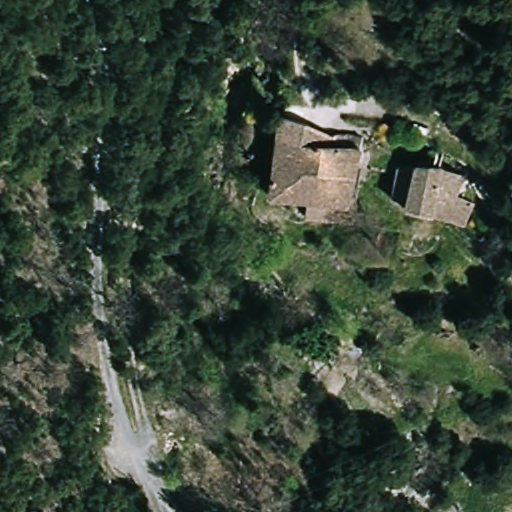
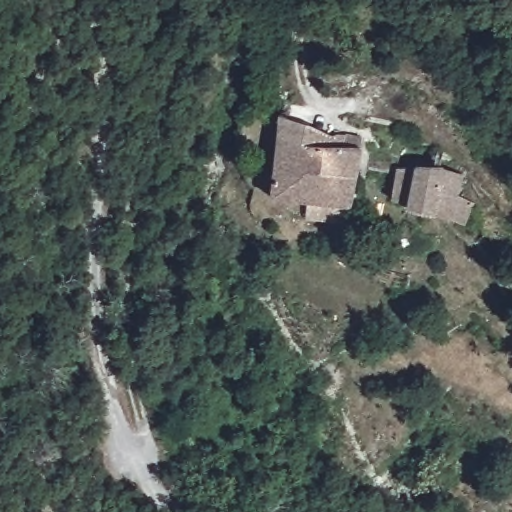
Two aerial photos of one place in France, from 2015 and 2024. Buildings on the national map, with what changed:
unchanged [(294,203),(272,201),(275,140),(277,120),(331,134),(340,137),(357,141),(347,207),(294,203)]
unchanged [(392,167),(410,164),(434,165),(433,175),(454,179),(452,197),(470,206),(462,229),(402,211),(403,194),(392,193),(392,167)]

